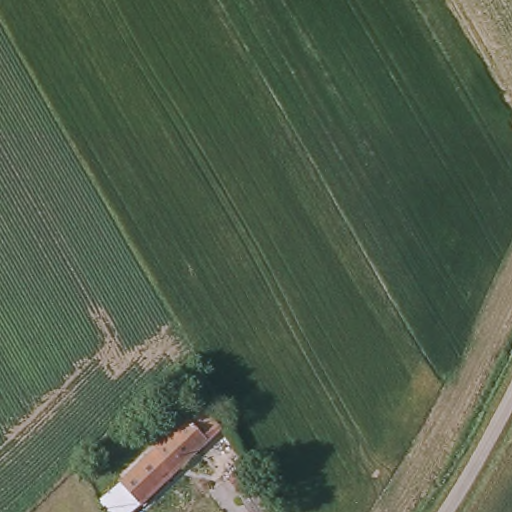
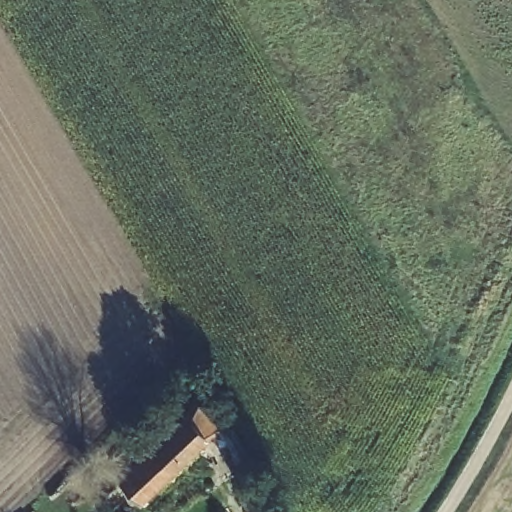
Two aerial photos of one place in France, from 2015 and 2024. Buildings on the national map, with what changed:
unchanged [(121,477),(158,443),(154,439),(199,399),(221,423),(140,498),(125,512),(117,512),(103,493),(121,477)]

